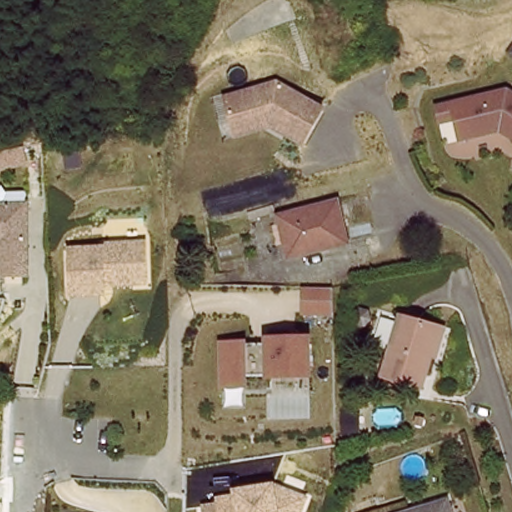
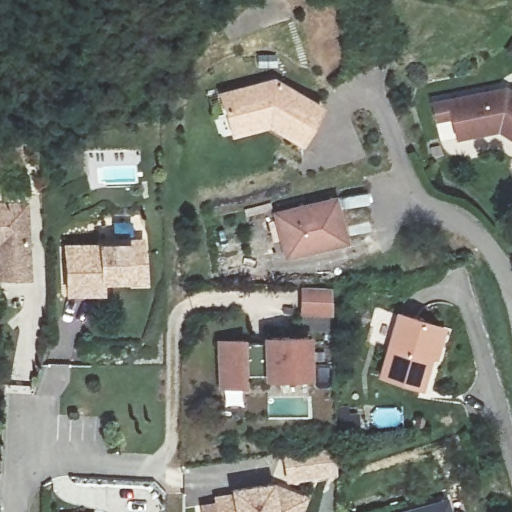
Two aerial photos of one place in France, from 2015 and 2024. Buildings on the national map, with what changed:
unchanged [(235,127),(228,105),(280,89),(326,114),(307,150),(273,131),(240,142),(235,127)]
unchanged [(512,97),(512,144),(500,135),(458,144),(457,144),(451,105),(509,95),(512,97)]
unchanged [(370,195),(379,239),(288,259),(279,216),(370,195)]
unchanged [(5,282),(3,252),(0,253),(0,204),(31,203),(39,282),(5,282)]
unchanged [(117,290),(114,300),(76,300),(72,250),(148,244),(153,287),(117,290)]
unchanged [(322,287),(324,313),(294,313),(294,288),(322,287)]
unchanged [(442,325),(427,390),(387,381),(401,316),(442,325)]
unchanged [(311,381),(252,383),(252,393),(229,393),(227,346),(312,340),(311,381)]
unchanged [(243,503),(242,498),(280,492),(314,504),(311,512),(226,512),(225,507),(243,503)]
unchanged [(450,512),(409,512),(447,501),(450,512)]

